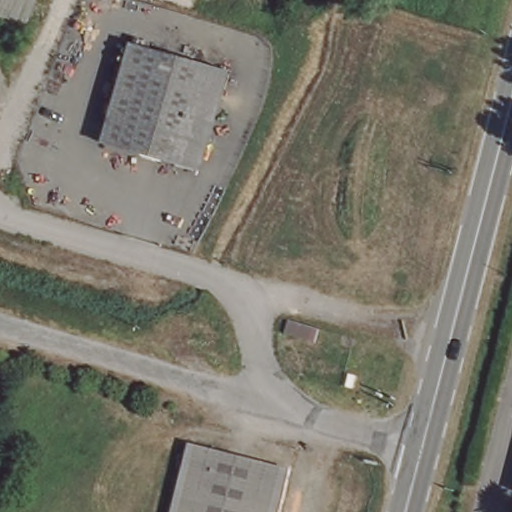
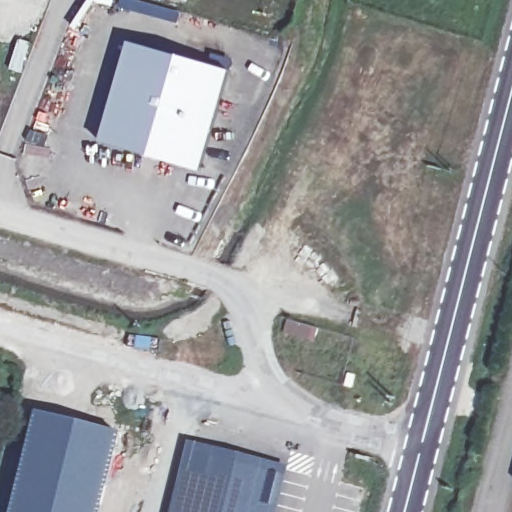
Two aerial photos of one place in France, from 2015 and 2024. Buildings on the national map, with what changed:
unchanged [(224,74),(194,172),(98,144),(127,46),(224,74)]
new [(320,329),(315,343),(282,333),(287,320),(320,329)]
demolished [(221,328),(218,339),(205,335),(208,324),(221,328)]
demolished [(322,341),(317,355),(285,345),(288,332),(322,341)]
new [(34,411),(118,433),(98,512),(8,512),(34,411)]
unchanged [(191,448),(287,475),(276,512),(248,512),(179,493),(191,448)]
unchanged [(179,493),(248,512),(174,512),(179,493)]

